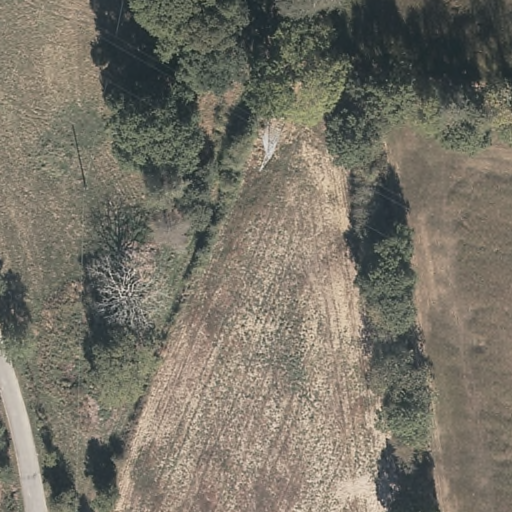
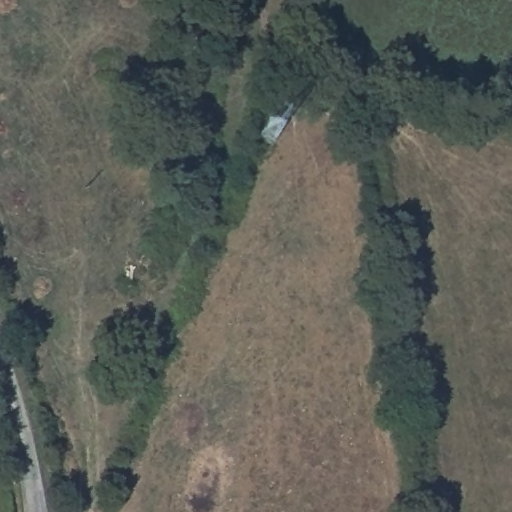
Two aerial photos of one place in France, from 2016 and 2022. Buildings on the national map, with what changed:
[]

